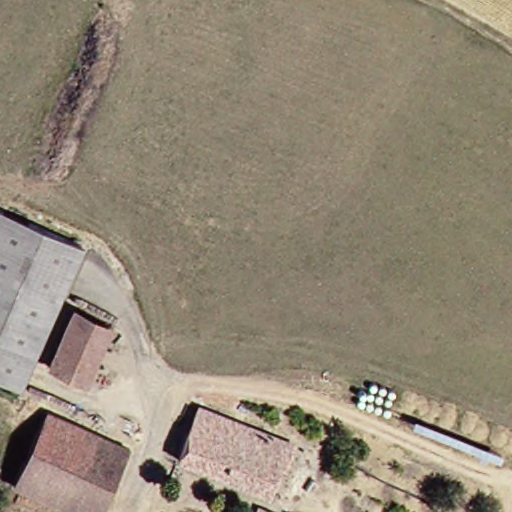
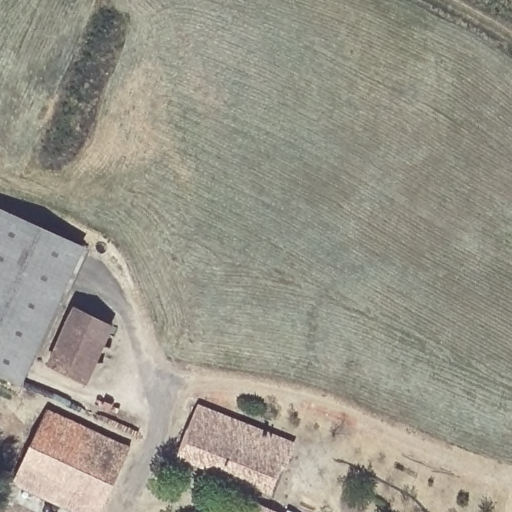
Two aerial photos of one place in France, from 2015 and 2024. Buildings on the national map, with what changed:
unchanged [(87,245),(26,387),(0,376),(0,206),(87,245)]
unchanged [(92,383),(52,364),(79,306),(116,326),(92,383)]
unchanged [(290,466),(284,464),(274,489),(182,455),(203,405),(284,434),(299,440),(290,466)]
unchanged [(131,448),(102,512),(77,512),(14,481),(42,420),(50,409),(131,448)]
unchanged [(280,512),(262,512),(265,506),(280,512)]
unchanged [(296,512),(293,512),(294,511),(296,512)]

